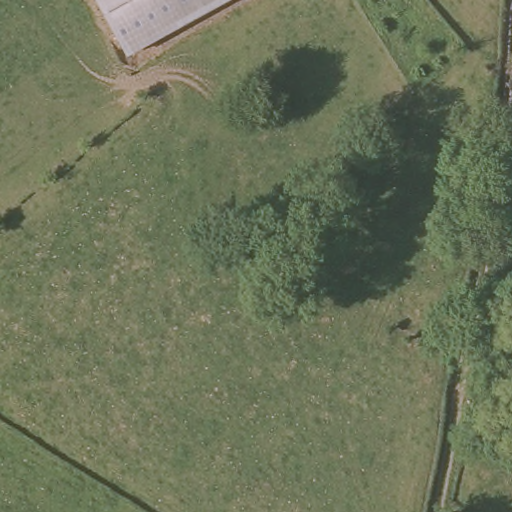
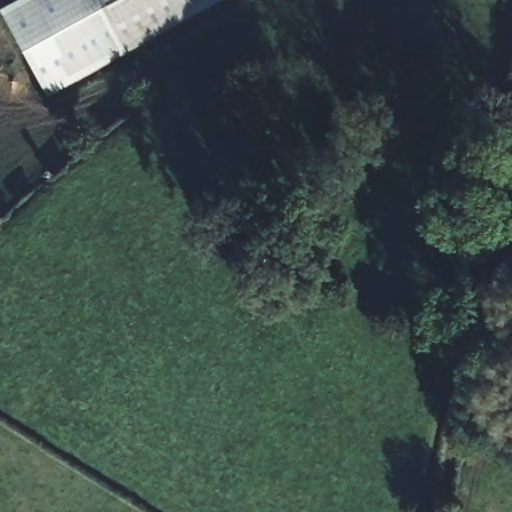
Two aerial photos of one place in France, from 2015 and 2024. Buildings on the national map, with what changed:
new [(1,12),(24,0),(98,0),(128,55),(49,100),(1,12)]
unchanged [(98,0),(231,0),(128,55),(98,0)]

